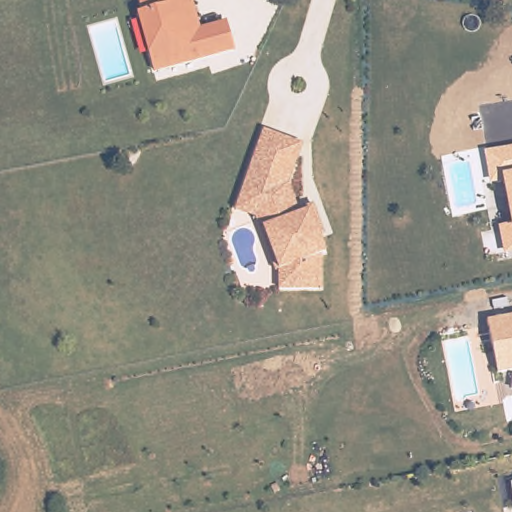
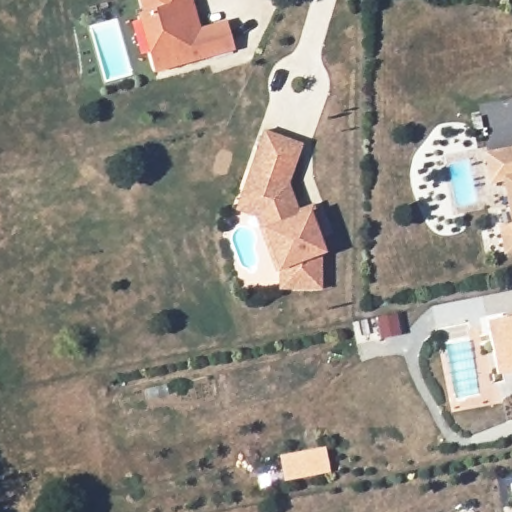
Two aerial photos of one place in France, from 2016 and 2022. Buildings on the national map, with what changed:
unchanged [(229,20),(238,51),(152,74),(135,11),(142,9),(140,0),(194,0),(202,26),(229,20)]
unchanged [(255,217),(236,210),(237,204),(263,131),(302,145),(287,184),(292,196),(297,210),(312,205),(322,234),(318,235),(324,253),(320,255),(320,279),(320,289),(277,289),(277,283),(277,270),(275,271),(255,217)]
unchanged [(497,225),(510,222),(502,180),(490,185),(482,150),(512,145),(512,253),(504,255),(497,225)]
unchanged [(512,315),(512,373),(497,375),(486,320),(512,315)]
new [(326,449),(330,471),(287,480),(282,457),(326,449)]
unchanged [(511,485),(512,484),(512,489),(511,485)]

